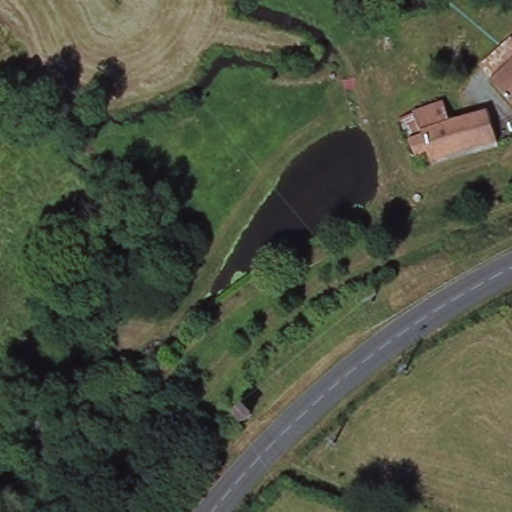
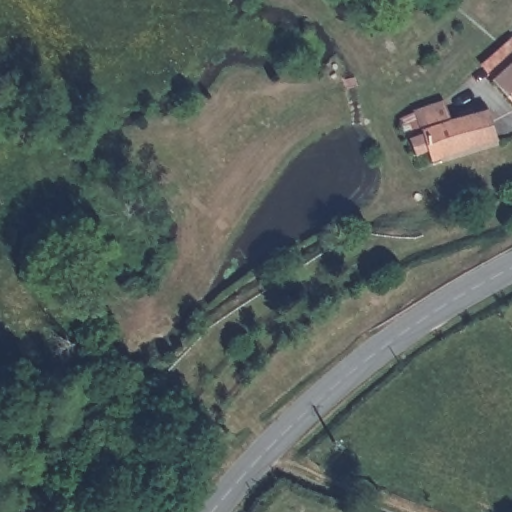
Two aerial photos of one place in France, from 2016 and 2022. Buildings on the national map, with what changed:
unchanged [(512,110),(485,80),(512,55),(512,110)]
unchanged [(429,162),(424,151),(412,155),(404,132),(418,128),(415,120),(412,121),(408,113),(410,112),(423,106),(438,99),(446,115),(461,110),(478,103),(493,137),(475,144),(429,162)]

